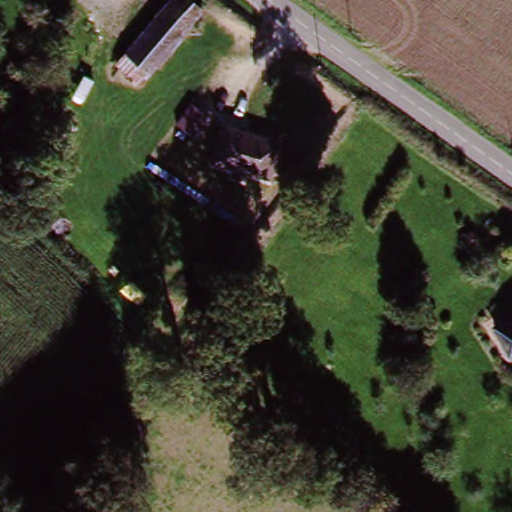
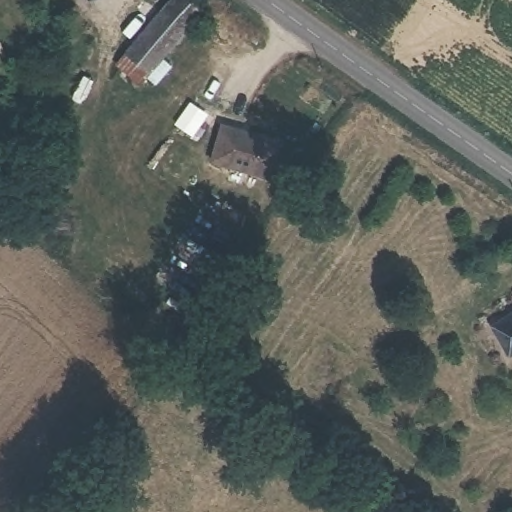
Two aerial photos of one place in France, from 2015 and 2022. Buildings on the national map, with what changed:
unchanged [(148,68),(124,44),(169,0),(183,0),(201,19),(148,68)]
unchanged [(277,138),(266,175),(207,160),(217,123),(277,138)]
unchanged [(487,330),(512,311),(512,352),(503,358),(487,330)]

